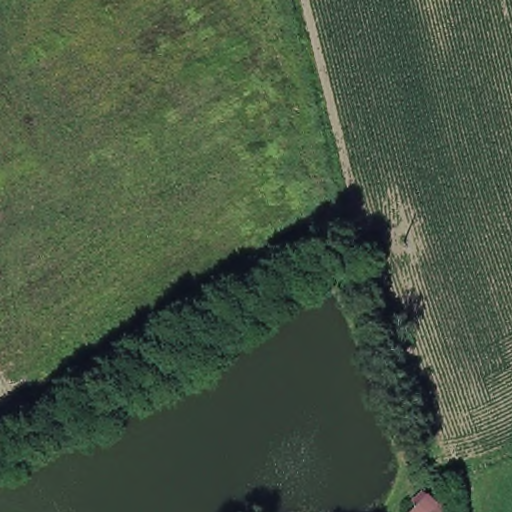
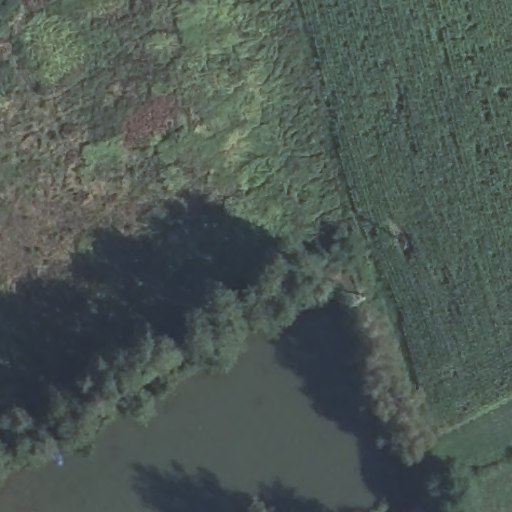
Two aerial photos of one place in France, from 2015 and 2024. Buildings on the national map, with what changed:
unchanged [(426,499),(436,512),(413,512),(413,511),(426,499)]

